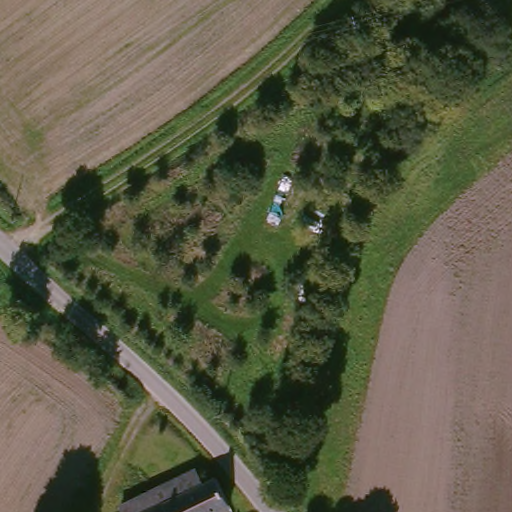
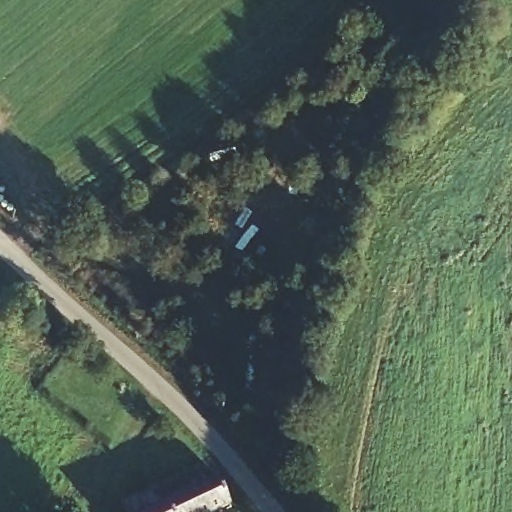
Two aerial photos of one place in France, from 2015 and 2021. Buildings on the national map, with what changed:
unchanged [(213,476),(216,480),(227,507),(215,512),(122,512),(119,507),(133,500),(194,471),(200,483),(213,476)]

